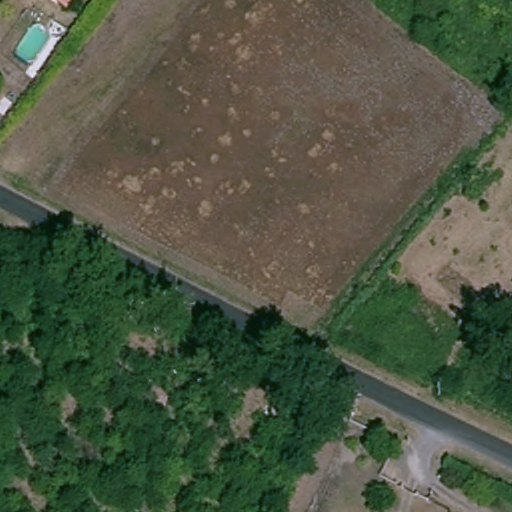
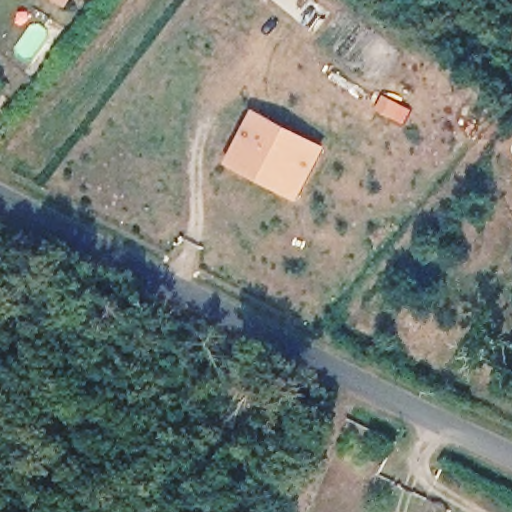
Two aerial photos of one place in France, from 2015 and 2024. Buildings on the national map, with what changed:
unchanged [(53,3),(49,0),(77,0),(68,14),(53,3)]
new [(329,149),(300,203),(228,166),(255,112),(329,149)]

